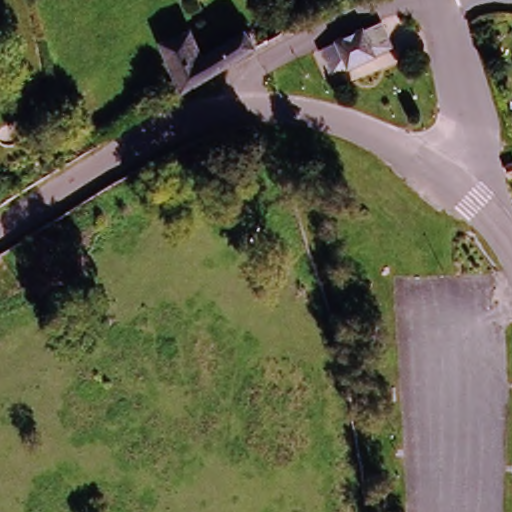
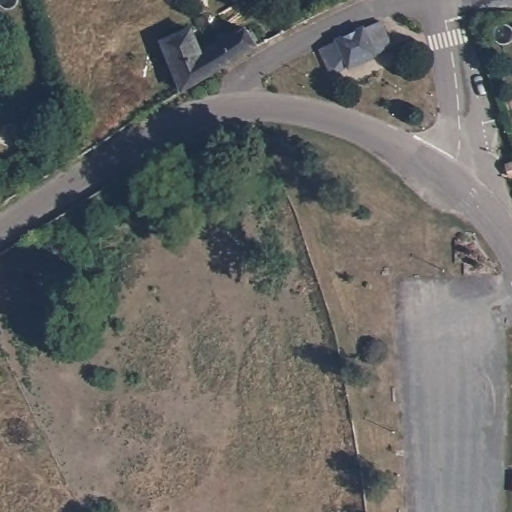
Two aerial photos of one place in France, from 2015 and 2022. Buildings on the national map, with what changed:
unchanged [(362,61),(361,60),(344,69),(333,46),(350,38),(350,37),(371,27),(390,17),(402,41),(382,51),(362,61)]
unchanged [(155,46),(186,28),(191,36),(204,55),(245,30),(258,50),(245,59),(185,96),(155,46)]
unchanged [(504,143),(496,146),(490,132),(497,128),(504,143)]

